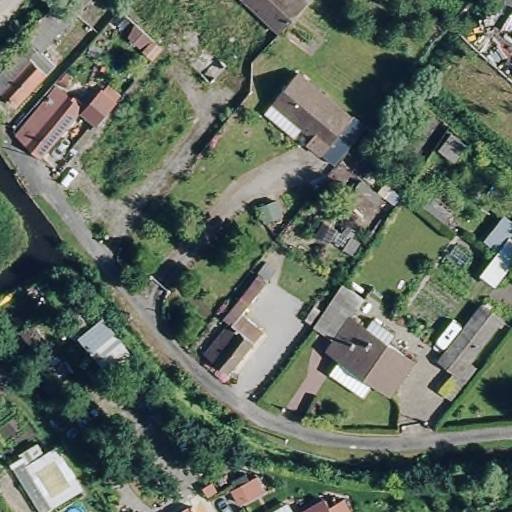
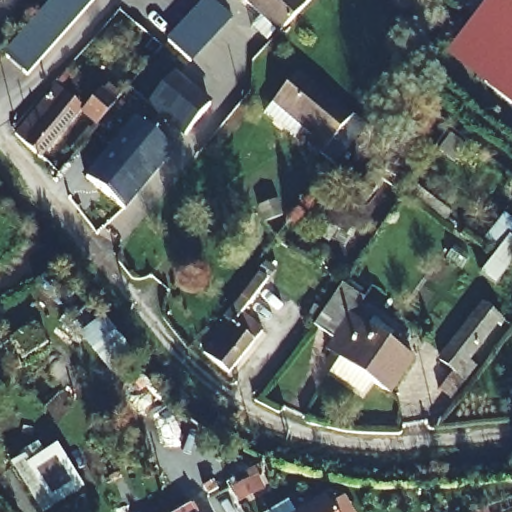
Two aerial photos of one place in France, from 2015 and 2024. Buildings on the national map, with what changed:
unchanged [(0,92),(0,93),(0,72),(30,40),(25,36),(58,0),(91,0),(42,51),(55,64),(17,106),(0,92)]
new [(210,0),(211,0),(232,20),(190,62),(170,42),(210,0)]
unchanged [(308,6),(283,33),(246,0),(314,0),(308,6)]
new [(512,106),(446,55),(488,0),(511,0),(512,1),(512,106)]
demolished [(182,22),(230,67),(213,84),(207,77),(166,41),(182,22)]
new [(183,139),(147,107),(175,72),(211,102),(183,139)]
unchanged [(333,166),(322,157),(303,142),(308,137),(270,104),(296,74),(352,122),(362,131),(333,166)]
unchanged [(99,129),(87,119),(87,116),(78,115),(35,160),(10,139),(60,87),(75,99),(82,92),(88,99),(82,105),(92,112),(103,100),(115,111),(99,129)]
new [(172,152),(125,210),(87,180),(135,122),(172,152)]
unchanged [(365,215),(363,217),(352,209),(355,206),(346,200),(360,181),(360,180),(377,192),(385,183),(402,196),(395,206),(394,206),(393,204),(383,217),(382,220),(373,214),(370,219),(365,215)]
unchanged [(498,250),(482,241),(502,212),(512,220),(512,235),(510,237),(512,239),(512,266),(495,287),(480,274),(498,250)]
unchanged [(242,314),(262,331),(230,372),(205,352),(226,326),(222,322),(257,277),(265,283),(242,314)]
unchanged [(355,317),(417,360),(393,391),(376,380),(362,396),(330,372),(342,357),(332,348),(337,340),(318,326),(347,283),(367,300),(355,317)]
unchanged [(470,361),(477,367),(450,400),(438,392),(452,374),(437,361),(482,307),(502,322),(470,361)]
unchanged [(104,317),(132,353),(132,355),(110,373),(80,336),(104,317)]
unchanged [(10,337),(39,320),(54,345),(24,361),(10,337)]
unchanged [(82,492),(47,512),(46,512),(19,467),(52,445),(82,492)]
unchanged [(196,512),(179,512),(192,505),(196,512)]
unchanged [(331,512),(315,512),(328,506),(331,512)]
unchanged [(294,512),(281,512),(291,507),(294,512)]
unchanged [(348,512),(337,512),(346,507),(348,512)]

